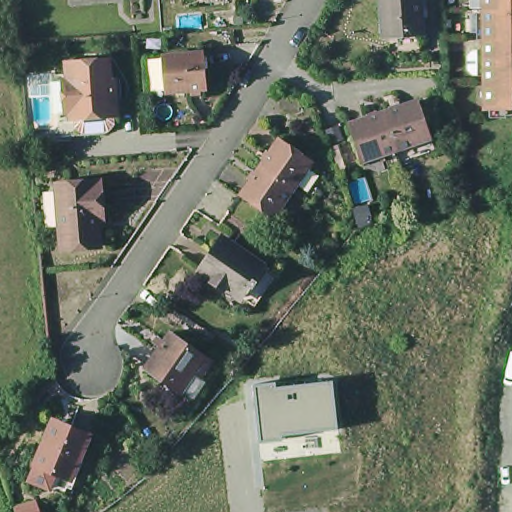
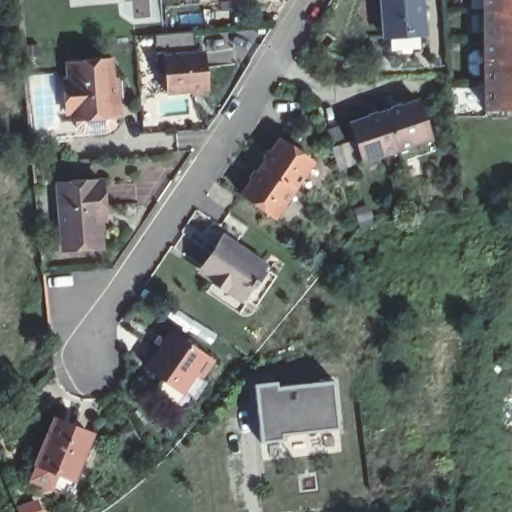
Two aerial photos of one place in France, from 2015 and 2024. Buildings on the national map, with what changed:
unchanged [(384,39),(382,0),(422,0),(425,37),(384,39)]
unchanged [(500,110),(495,110),(495,77),(487,78),(487,52),(494,52),(494,35),(482,35),(481,18),(494,17),(493,0),(512,0),(512,117),(500,117),(500,110)]
unchanged [(72,116),(71,109),(67,109),(64,77),(69,77),(67,59),(110,56),(111,77),(116,77),(117,94),(118,112),(72,116)]
unchanged [(166,99),(163,62),(204,60),(207,96),(166,99)]
unchanged [(419,102),(432,139),(398,151),(364,162),(352,126),(385,114),(419,102)]
unchanged [(280,140),(314,163),(294,192),(275,219),(242,197),(260,170),(280,140)]
unchanged [(100,246),(63,249),(58,186),(101,182),(104,220),(98,221),(100,246)]
unchanged [(197,272),(218,241),(260,270),(252,282),(255,284),(250,291),(247,288),(239,300),(224,290),(221,293),(207,285),(210,281),(197,272)]
unchanged [(186,392),(170,382),(168,385),(148,371),(173,336),(213,364),(202,381),(196,377),(186,392)]
unchanged [(276,382),(276,388),(333,382),(338,428),(282,435),(283,440),(264,442),(256,384),(276,382)]
unchanged [(88,437),(71,478),(54,472),(37,465),(55,421),(72,427),(71,431),(78,433),(88,437)]

